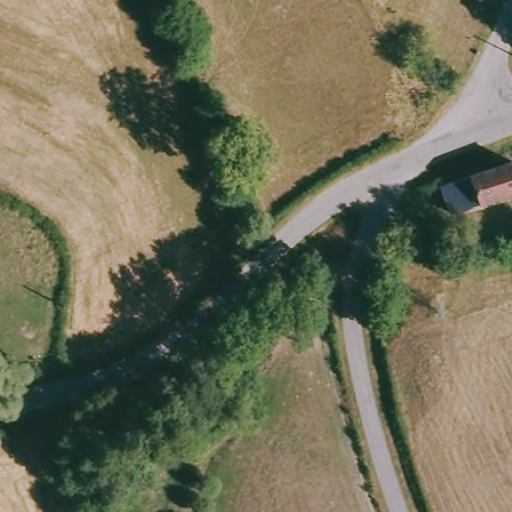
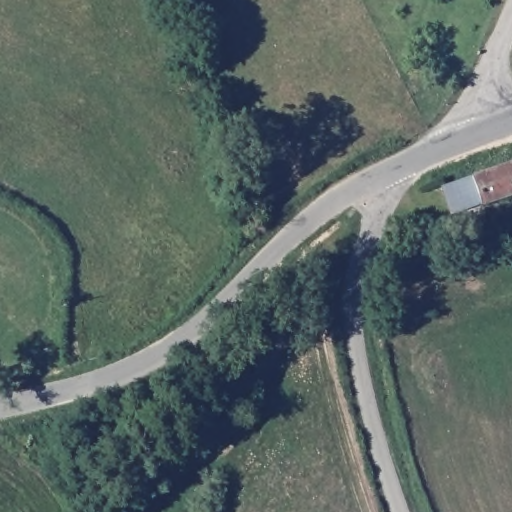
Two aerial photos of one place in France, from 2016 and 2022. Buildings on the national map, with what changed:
unchanged [(512,161),(512,193),(456,212),(447,184),(499,165),(512,161)]

